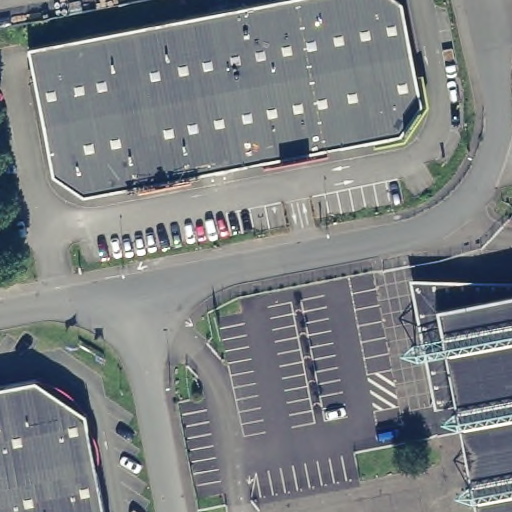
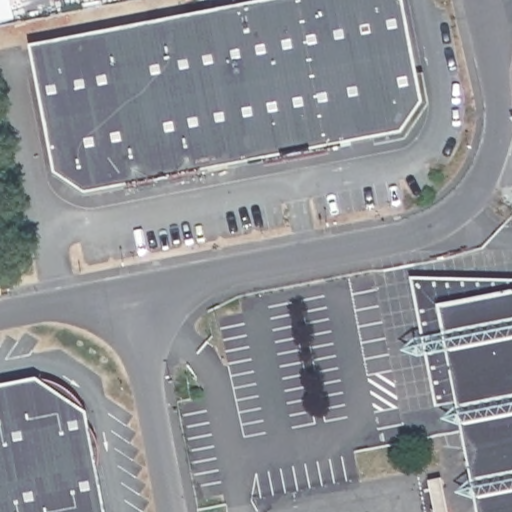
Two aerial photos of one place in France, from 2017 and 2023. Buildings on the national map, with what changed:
unchanged [(274,0),(398,0),(402,2),(421,104),(400,135),(83,196),(52,175),(28,47),(274,0)]
unchanged [(477,512),(435,303),(512,289),(512,512),(477,512)]
unchanged [(34,385),(85,419),(102,512),(0,512),(0,392),(34,385)]

